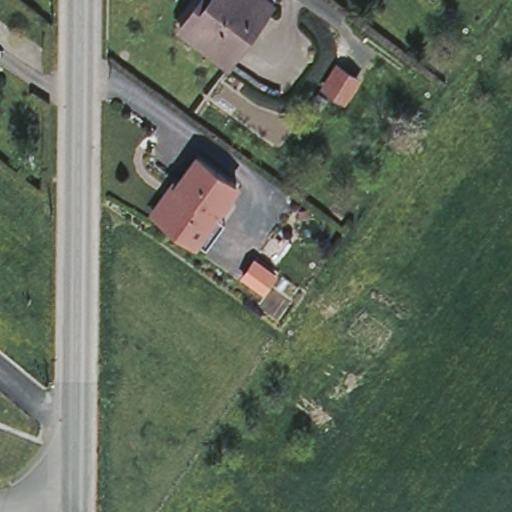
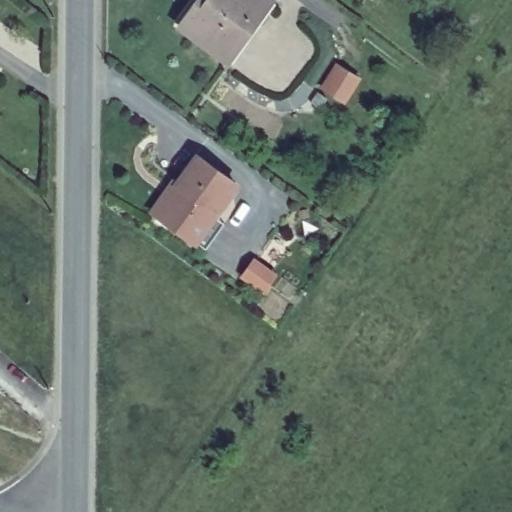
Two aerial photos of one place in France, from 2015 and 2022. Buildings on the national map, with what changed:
unchanged [(228,61),(181,25),(199,0),(271,0),(272,1),(228,61)]
unchanged [(205,244),(195,236),(160,211),(152,206),(173,177),(177,180),(197,151),(235,178),(214,209),(225,217),(205,244)]

